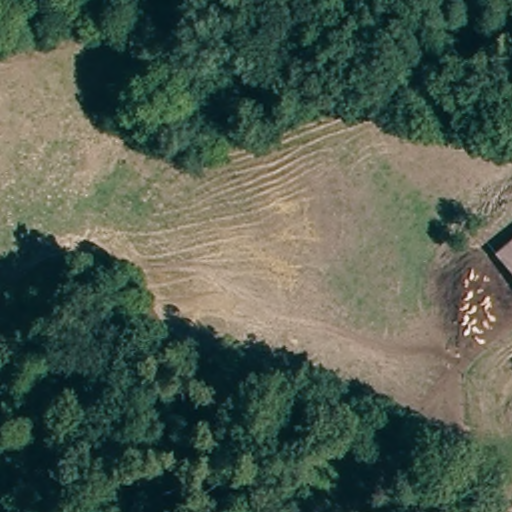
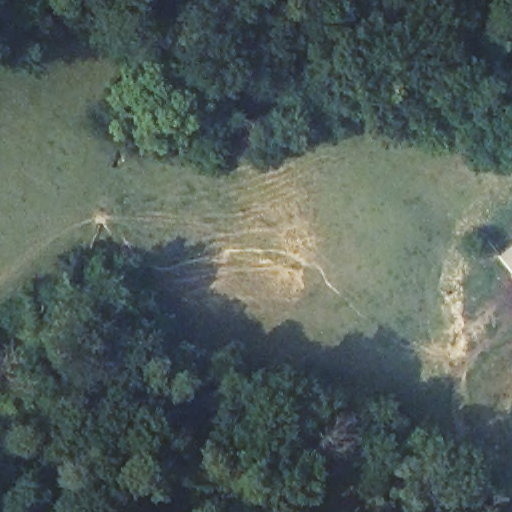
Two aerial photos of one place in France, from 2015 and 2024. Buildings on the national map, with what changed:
unchanged [(507,264),(512,259),(512,270),(507,264)]

